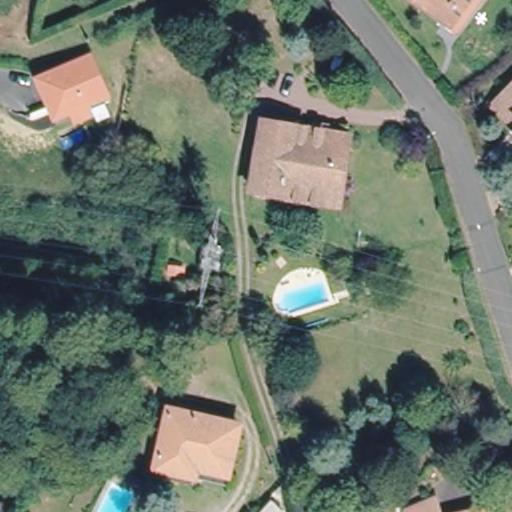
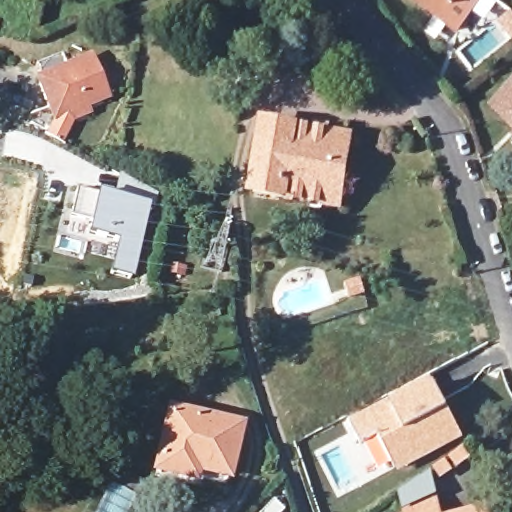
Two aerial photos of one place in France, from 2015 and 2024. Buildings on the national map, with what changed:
unchanged [(414,0),(442,0),(425,15),(414,0)]
unchanged [(475,1),(436,29),(425,15),(442,0),(474,0),(475,1)]
unchanged [(72,124),(69,115),(52,121),(35,80),(90,59),(105,100),(85,109),(89,117),(72,124)]
unchanged [(486,101),(512,82),(512,137),(486,101)]
unchanged [(250,188),(261,121),(345,133),(335,198),(250,188)]
new [(89,237),(91,226),(70,220),(76,193),(115,202),(121,179),(159,198),(155,213),(147,211),(138,249),(130,280),(110,276),(118,244),(89,237)]
unchanged [(357,303),(355,290),(366,287),(372,300),(357,303)]
new [(390,398),(430,377),(464,438),(400,472),(379,432),(360,442),(350,418),(390,398)]
unchanged [(241,425),(231,475),(180,466),(176,474),(155,469),(151,467),(165,412),(241,425)]
unchanged [(130,457),(120,482),(105,478),(116,456),(130,457)]
demolished [(95,468),(79,497),(64,490),(77,461),(95,468)]
new [(404,512),(403,510),(438,495),(443,512),(404,512)]
demolished [(435,495),(442,512),(423,512),(421,503),(435,495)]
new [(490,512),(460,512),(488,505),(490,512)]
demolished [(463,512),(461,512),(462,511),(463,512)]

